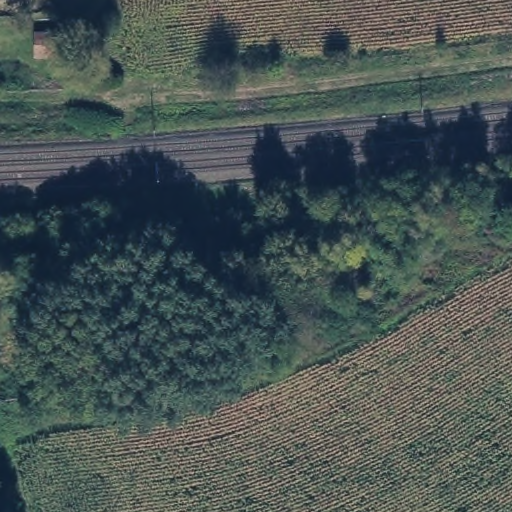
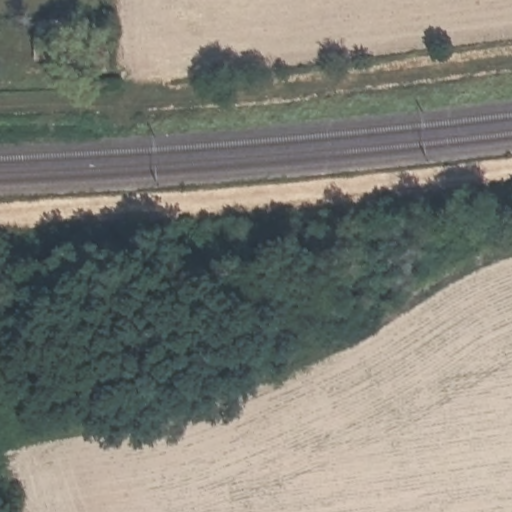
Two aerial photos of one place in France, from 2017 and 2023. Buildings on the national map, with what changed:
unchanged [(57,61),(24,62),(23,31),(56,32),(57,61)]

